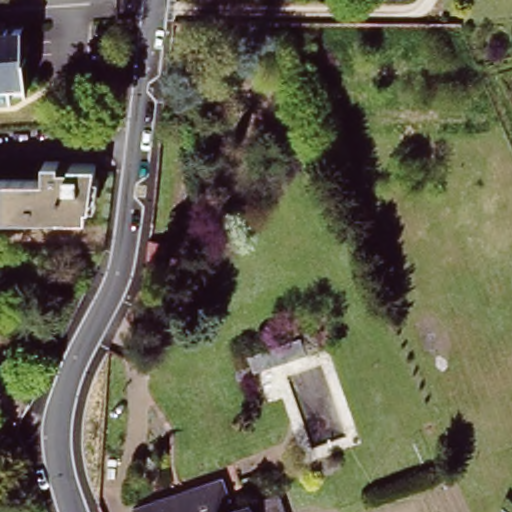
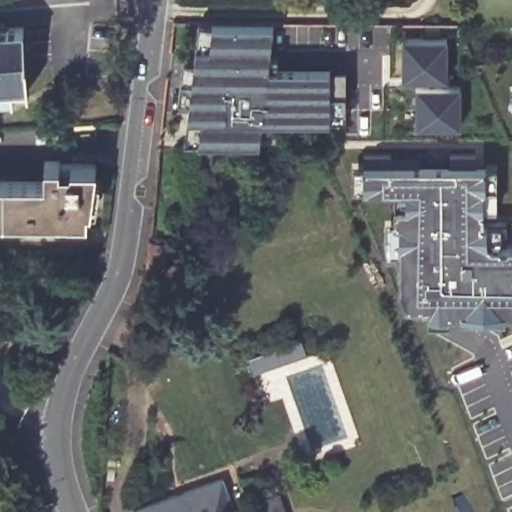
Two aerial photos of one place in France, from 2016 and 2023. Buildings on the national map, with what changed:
new [(200,19),(275,20),(270,65),(347,65),(347,118),(263,117),(261,139),(186,139),(200,19)]
unchanged [(29,81),(15,83),(15,95),(0,95),(0,28),(26,26),(29,81)]
new [(403,35),(447,35),(447,76),(402,76),(403,35)]
new [(417,84),(462,85),(462,125),(417,125),(417,84)]
unchanged [(43,164),(59,164),(60,168),(98,167),(92,203),(87,203),(85,224),(0,220),(0,181),(43,183),(43,164)]
new [(504,312),(460,312),(446,312),(427,311),(427,309),(420,309),(420,303),(408,304),(398,287),(398,256),(398,221),(393,222),(392,185),(363,186),(363,165),(483,165),(485,222),(498,222),(498,244),(512,243),(512,312),(504,312)]
unchanged [(150,236),(170,238),(167,266),(146,264),(150,236)]
unchanged [(293,336),(300,354),(250,374),(242,354),(293,336)]
unchanged [(130,507),(221,477),(234,506),(276,489),(283,512),(131,512),(130,507)]

